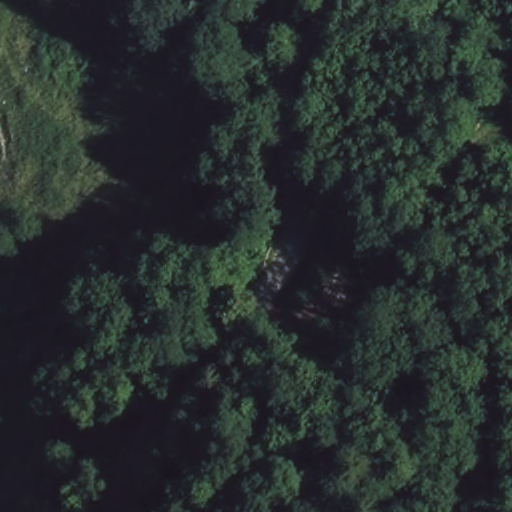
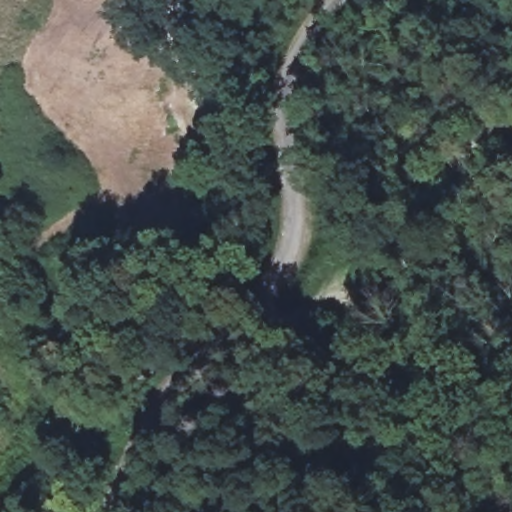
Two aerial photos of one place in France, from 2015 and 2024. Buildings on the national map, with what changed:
unchanged [(281,118),(257,118),(258,99),(282,101),(281,118)]

